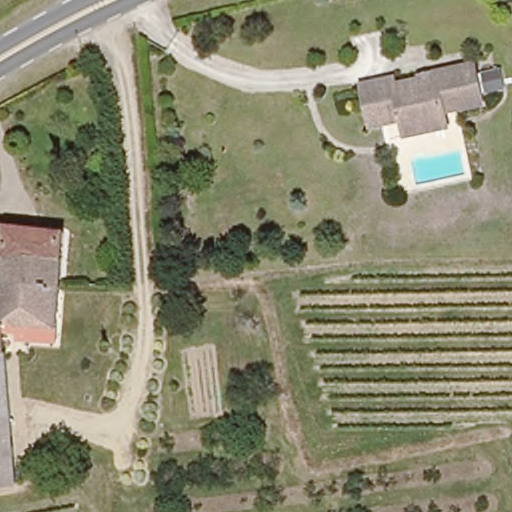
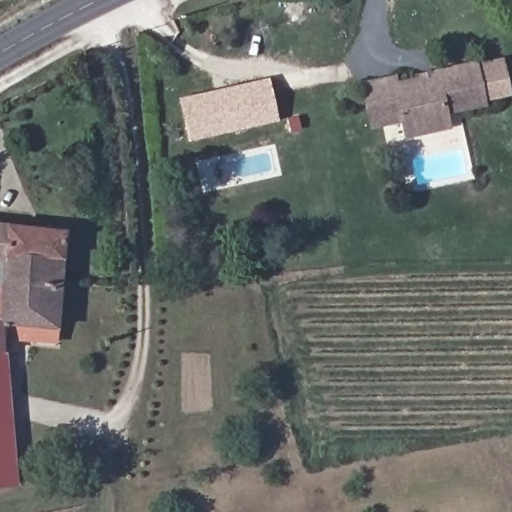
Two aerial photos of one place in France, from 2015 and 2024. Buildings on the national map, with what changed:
unchanged [(432,134),(410,139),(406,122),(392,126),(374,129),(366,87),(396,80),(398,89),(426,82),(425,77),(435,76),(480,66),(487,105),(449,114),(450,117),(452,129),(432,134)]
new [(187,141),(177,97),(269,77),(279,122),(187,141)]
unchanged [(70,234),(64,289),(0,282),(0,224),(70,234)]
unchanged [(22,326),(6,323),(2,356),(0,356),(0,282),(64,289),(57,344),(31,341),(20,340),(22,326)]
unchanged [(2,356),(5,357),(11,485),(0,486),(0,356),(2,356)]

